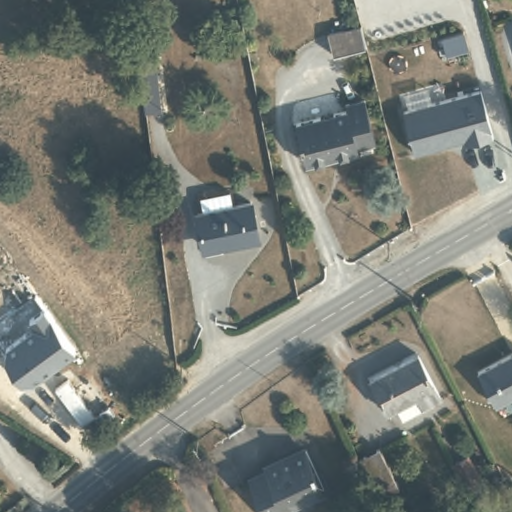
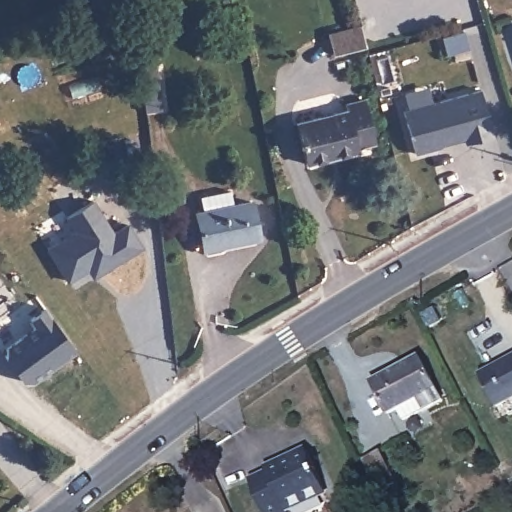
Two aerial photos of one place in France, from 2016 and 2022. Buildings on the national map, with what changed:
unchanged [(361,25),(366,45),(334,52),(329,31),(361,25)]
unchanged [(159,49),(166,111),(148,114),(140,50),(159,49)]
unchanged [(494,137),(466,144),(465,140),(416,154),(403,110),(480,90),(494,137)]
unchanged [(374,140),(357,144),(357,149),(305,161),(295,117),(345,106),(345,100),(365,97),(374,140)]
unchanged [(231,191),(234,208),(255,204),(262,241),(204,250),(198,215),(204,214),(200,196),(231,191)]
new [(47,248),(74,230),(66,217),(95,199),(113,232),(130,223),(144,248),(92,279),(87,270),(68,282),(47,248)]
unchanged [(37,386),(22,383),(13,369),(5,355),(8,347),(33,326),(29,320),(44,309),(76,350),(37,386)]
unchanged [(442,397),(401,418),(395,405),(386,409),(370,377),(418,353),(442,397)]
new [(512,396),(495,405),(478,372),(512,353),(512,396)]
demolished [(508,394),(496,399),(489,385),(501,379),(508,394)]
unchanged [(264,467),(301,449),(319,488),(283,505),(286,512),(261,512),(248,484),(268,474),(264,467)]
unchanged [(399,478),(380,488),(368,463),(390,453),(399,478)]

